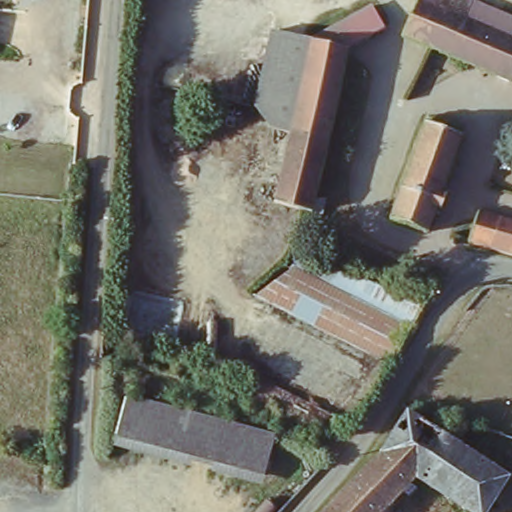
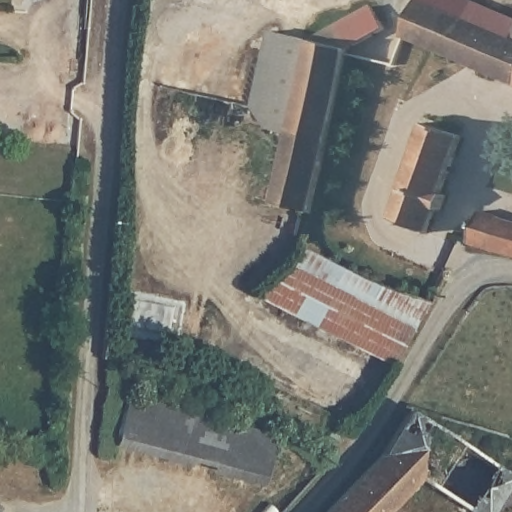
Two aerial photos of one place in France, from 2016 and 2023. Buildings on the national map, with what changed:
unchanged [(418,0),(476,0),(512,16),(512,83),(403,36),(418,1),(418,0)]
unchanged [(350,49),(325,194),(331,198),(324,221),(275,204),(288,136),(268,128),(252,105),(270,29),(301,35),(375,1),(390,29),(350,49)]
unchanged [(420,121),(462,134),(428,232),(388,219),(420,121)]
unchanged [(497,247),(504,213),(512,215),(512,251),(497,247)]
unchanged [(395,369),(257,299),(282,281),(292,260),(299,246),(395,292),(428,303),(418,329),(395,369)]
unchanged [(130,393),(275,438),(263,482),(115,444),(130,393)]
unchanged [(512,471),(512,475),(486,512),(481,512),(419,470),(381,512),(323,512),(385,443),(407,402),(512,471)]

